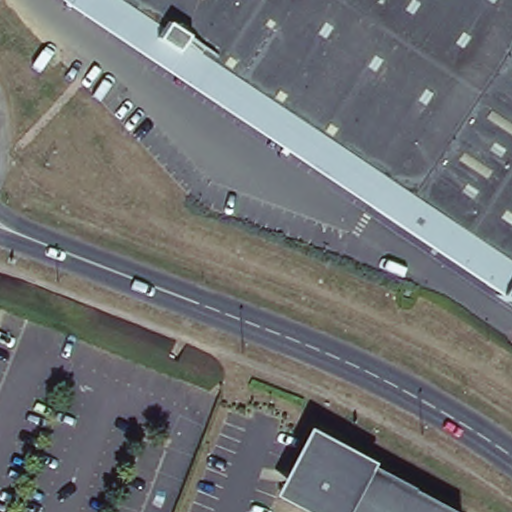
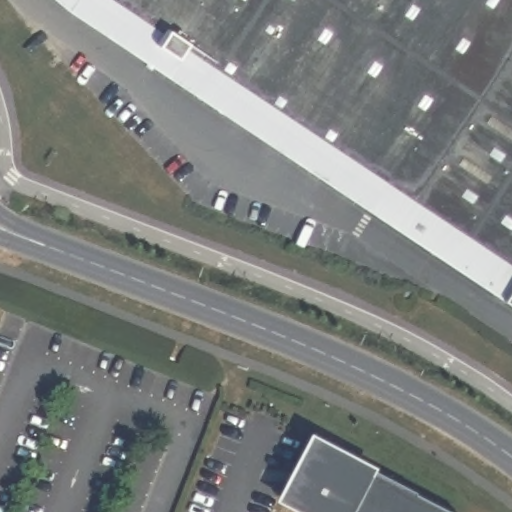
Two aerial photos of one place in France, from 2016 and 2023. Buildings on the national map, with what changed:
unchanged [(53,0),(512,0),(512,309),(69,14),(53,0)]
unchanged [(443,512),(288,512),(277,506),(312,438),(443,512)]

